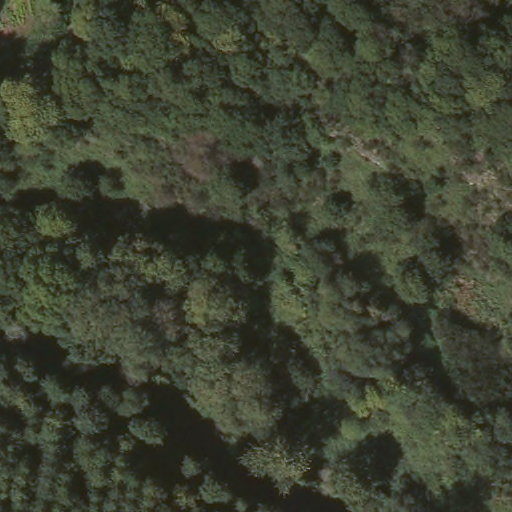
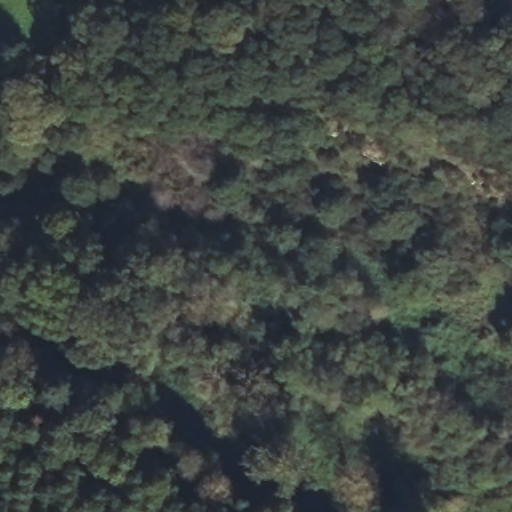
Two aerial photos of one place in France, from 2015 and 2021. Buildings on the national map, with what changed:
[]

